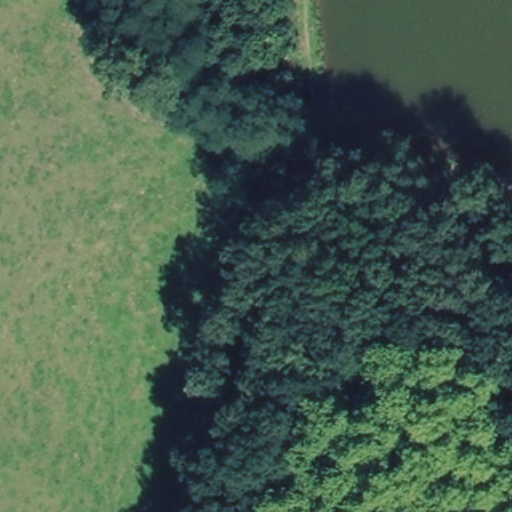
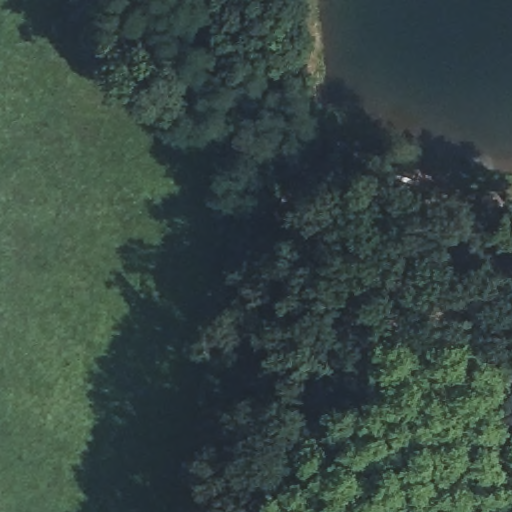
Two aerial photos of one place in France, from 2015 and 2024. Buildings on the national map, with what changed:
unchanged [(474,204),(492,214),(484,228),(467,219),(474,204)]

